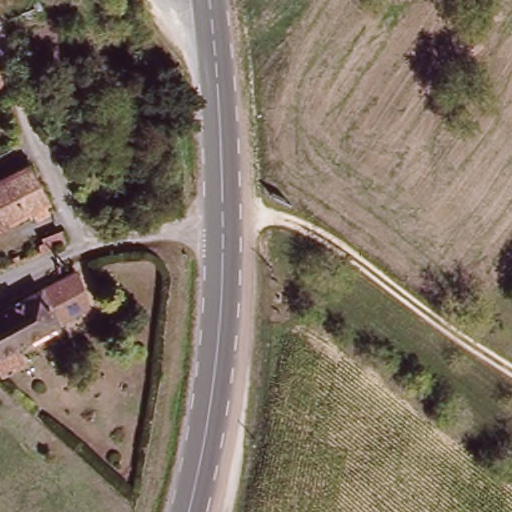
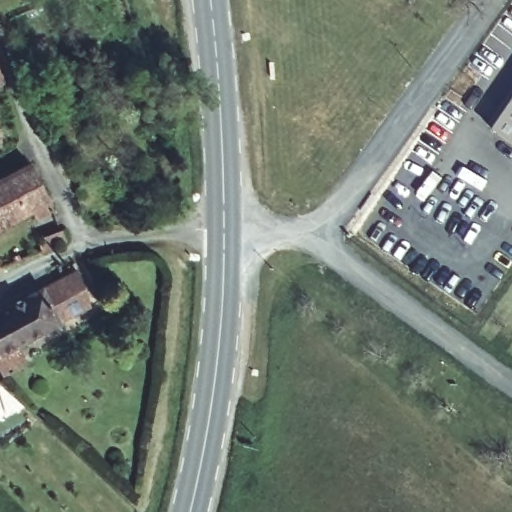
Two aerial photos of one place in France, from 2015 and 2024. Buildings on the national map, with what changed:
unchanged [(0,90),(0,76),(4,87),(0,90)]
new [(512,101),(512,146),(491,131),(512,101)]
unchanged [(21,216),(0,227),(0,181),(30,165),(46,203),(21,216)]
unchanged [(65,242),(44,248),(38,231),(58,225),(65,242)]
unchanged [(0,264),(0,259),(2,263),(0,264)]
unchanged [(73,270),(88,303),(66,314),(0,351),(0,308),(48,282),(73,270)]

